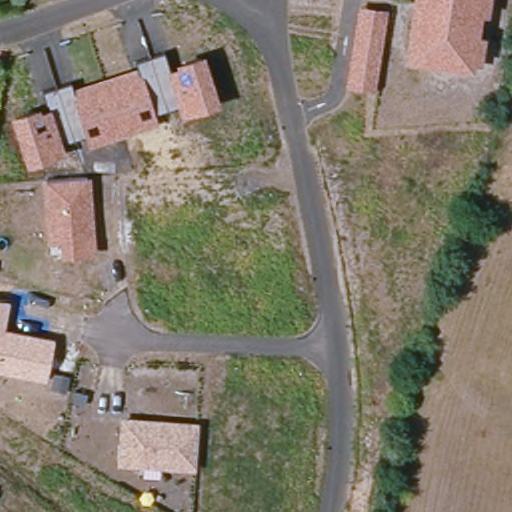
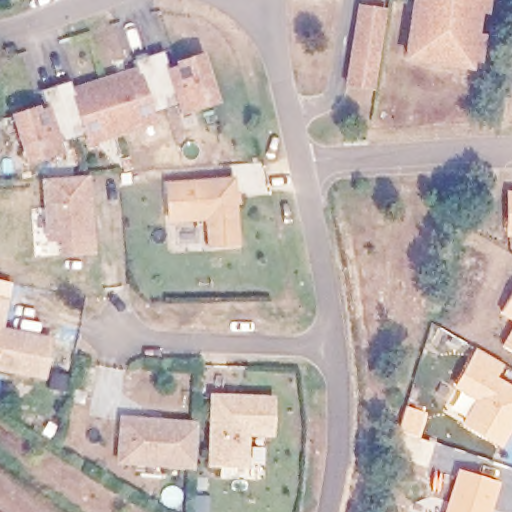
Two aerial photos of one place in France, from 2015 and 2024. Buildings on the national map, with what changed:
unchanged [(464,67),(404,56),(415,0),(487,0),(484,15),(475,14),(470,36),(480,38),(475,63),(466,61),(464,67)]
unchanged [(343,87),(358,10),(383,15),(367,92),(343,87)]
unchanged [(180,103),(172,105),(167,107),(150,53),(154,52),(165,48),(172,70),(183,66),(181,61),(201,55),(215,99),(195,105),(182,109),(180,103)]
unchanged [(141,122),(127,126),(123,128),(121,121),(107,78),(111,77),(131,71),(133,76),(141,74),(136,58),(150,53),(167,107),(153,111),(155,118),(141,122)]
unchanged [(90,138),(80,141),(75,143),(73,136),(57,82),(60,81),(72,77),(77,93),(85,91),(83,86),(107,78),(121,121),(101,127),(104,134),(90,138)]
unchanged [(50,151),(30,157),(16,113),(36,107),(38,111),(49,108),(42,87),(57,82),(73,136),(60,140),(62,147),(50,151)]
unchanged [(61,257),(59,241),(47,244),(44,180),(91,176),(96,255),(61,257)]
new [(210,251),(207,222),(169,225),(166,185),(237,181),(241,249),(210,251)]
new [(505,189),(512,190),(512,235),(504,235),(505,189)]
new [(512,291),(512,321),(499,313),(512,291)]
unchanged [(5,328),(54,338),(47,383),(0,374),(0,299),(10,301),(5,328)]
new [(500,345),(512,324),(512,352),(500,345)]
new [(477,347),(505,364),(498,376),(512,385),(512,434),(503,449),(459,423),(473,400),(452,387),(477,347)]
new [(251,441),(250,469),(209,467),(211,395),(276,397),(275,440),(251,441)]
new [(405,405),(427,413),(419,438),(396,430),(405,405)]
unchanged [(198,422),(194,468),(117,463),(120,416),(198,422)]
new [(457,468),(502,481),(492,512),(444,512),(457,468)]

